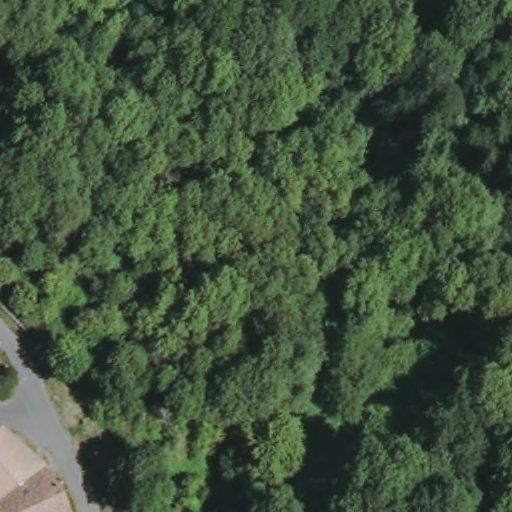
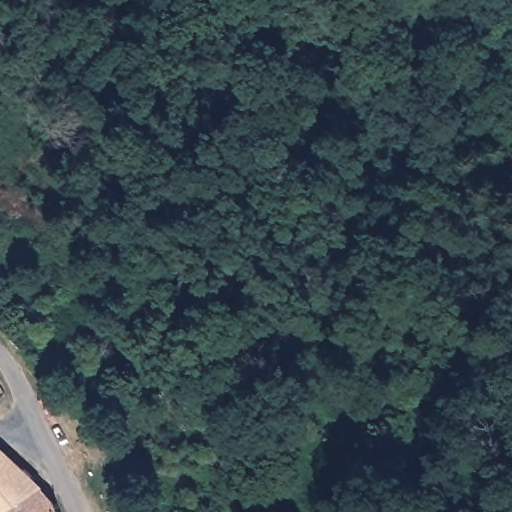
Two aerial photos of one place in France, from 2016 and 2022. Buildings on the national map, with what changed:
unchanged [(56,500),(61,498),(65,512),(0,512),(0,446),(56,500)]

